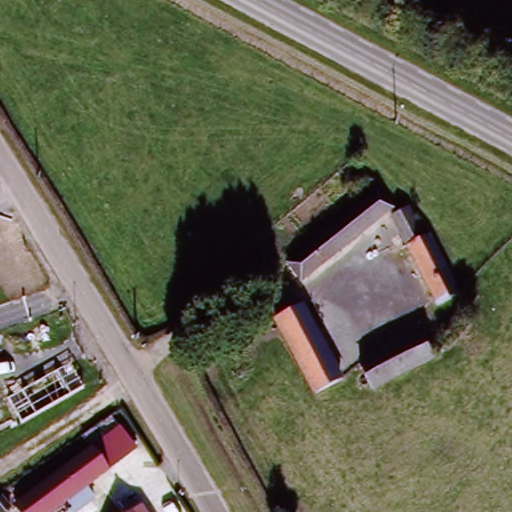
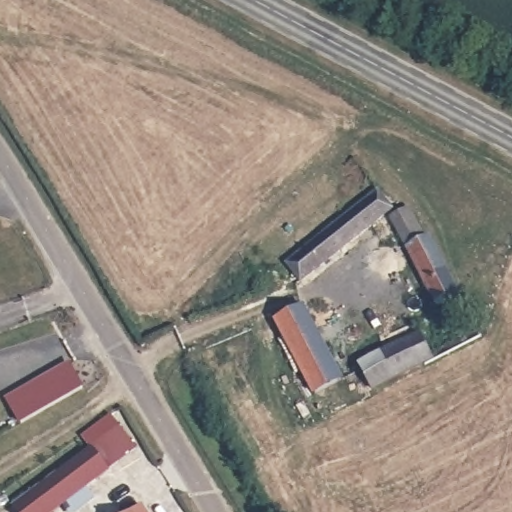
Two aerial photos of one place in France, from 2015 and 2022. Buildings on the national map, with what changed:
unchanged [(289,254),(380,195),(395,216),(302,276),(289,254)]
unchanged [(427,239),(453,286),(434,297),(391,220),(405,212),(422,242),(427,239)]
unchanged [(340,377),(316,392),(274,319),(299,304),(340,377)]
unchanged [(420,333),(434,358),(380,388),(365,363),(420,333)]
new [(69,360),(83,382),(24,420),(9,397),(69,360)]
unchanged [(62,495),(40,512),(10,512),(6,507),(120,422),(135,442),(82,480),(92,493),(70,506),(62,495)]
unchanged [(147,512),(134,512),(144,506),(147,512)]

